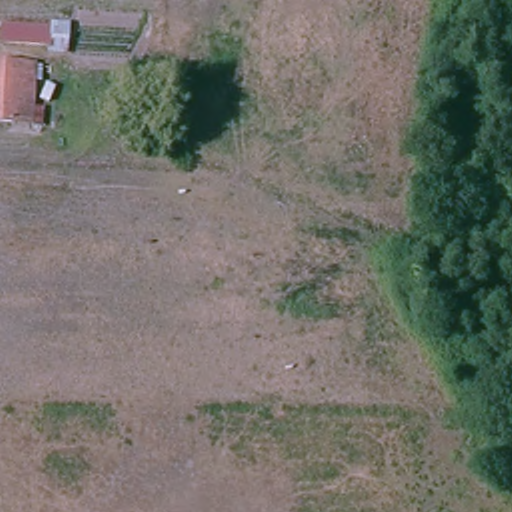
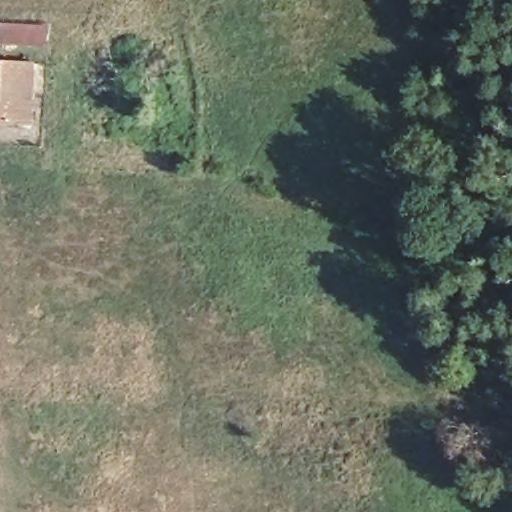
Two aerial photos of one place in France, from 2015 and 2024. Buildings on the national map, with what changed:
unchanged [(1,49),(4,24),(74,26),(68,51),(1,49)]
unchanged [(46,105),(45,128),(0,127),(0,63),(43,64),(43,79),(47,81),(46,105)]

